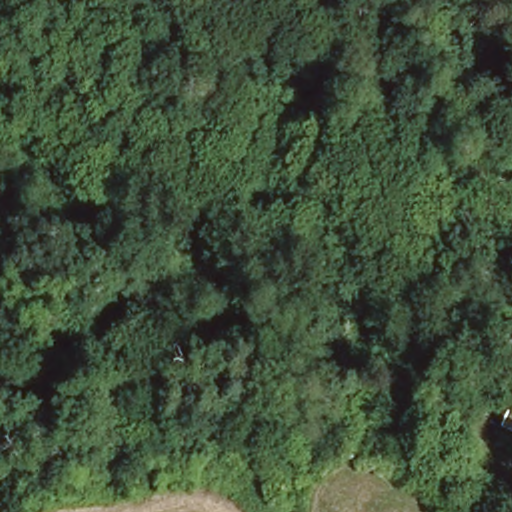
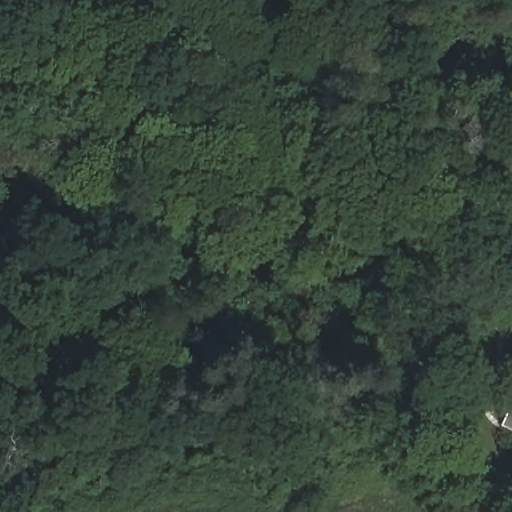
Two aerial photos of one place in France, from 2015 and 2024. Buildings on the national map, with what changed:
unchanged [(512,406),(506,403),(512,391),(512,406)]
unchanged [(512,432),(495,424),(506,403),(512,406),(512,432)]

